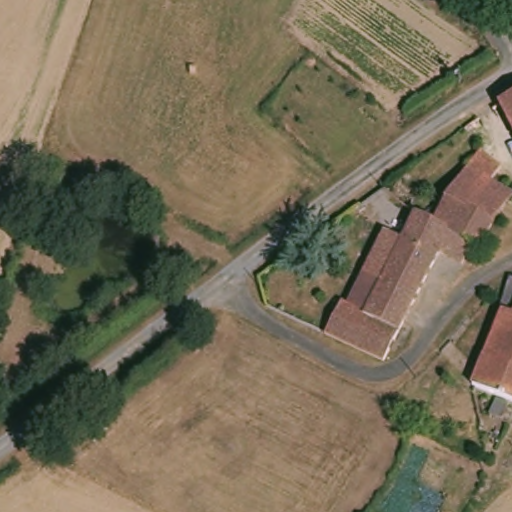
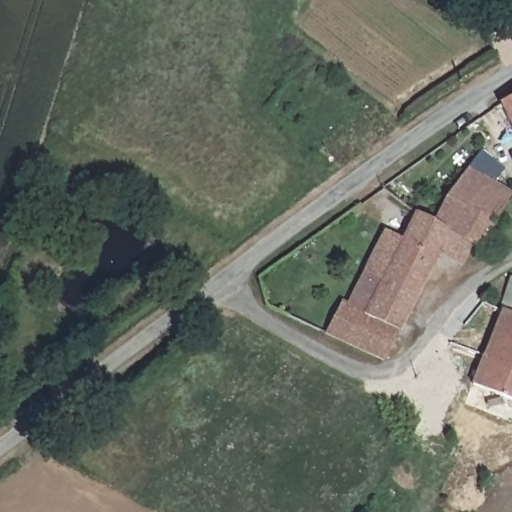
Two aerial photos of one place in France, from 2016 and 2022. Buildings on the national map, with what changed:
unchanged [(497,109),(512,100),(512,139),(497,109)]
unchanged [(470,242),(431,223),(464,165),(479,139),(491,147),(484,159),(492,164),(485,178),(508,191),(476,245),(470,242)]
unchanged [(460,262),(436,248),(380,357),(322,332),(339,296),(363,307),(370,293),(352,285),(377,237),(395,247),(411,212),(431,223),(470,242),(460,262)]
unchanged [(508,279),(512,280),(512,306),(502,302),(501,302),(508,279)]
unchanged [(470,379),(502,302),(512,306),(512,398),(470,379)]
unchanged [(490,394),(502,400),(495,415),(482,410),(490,394)]

